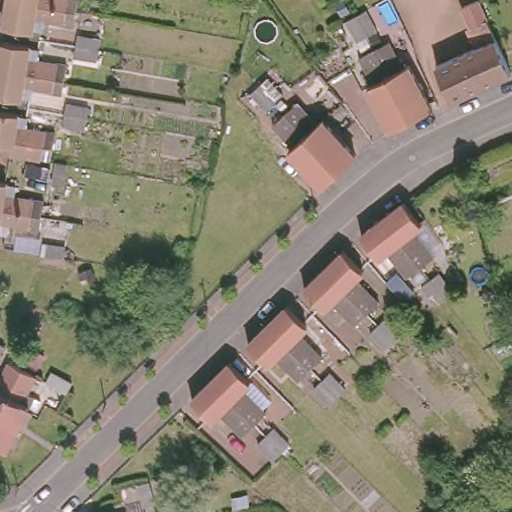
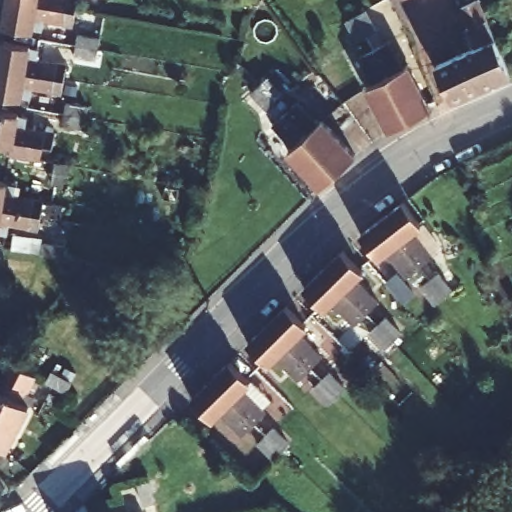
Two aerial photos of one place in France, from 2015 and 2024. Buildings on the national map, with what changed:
unchanged [(43,17),(41,27),(31,25),(30,28),(1,23),(5,0),(23,0),(73,8),(72,22),(43,17)]
unchanged [(75,0),(73,8),(23,0),(75,0)]
unchanged [(493,34),(509,69),(461,90),(448,96),(434,63),(473,45),(463,24),(470,22),(460,1),(462,0),(477,0),(479,3),(493,34)]
unchanged [(342,20),(351,16),(362,11),(371,29),(361,34),(352,38),(342,20)]
unchanged [(368,43),(381,36),(397,65),(405,62),(428,105),(407,116),(368,43)]
unchanged [(74,58),(76,49),(78,37),(99,40),(97,52),(95,62),(74,58)]
unchanged [(0,39),(22,43),(21,46),(33,48),(31,57),(60,63),(57,76),(0,66),(0,39)]
unchanged [(407,116),(387,127),(363,83),(370,80),(354,50),(368,43),(407,116)]
unchanged [(27,84),(26,94),(15,92),(14,95),(0,93),(0,66),(57,76),(55,89),(27,84)]
unchanged [(246,93),(255,85),(262,77),(278,94),(270,102),(262,110),(246,93)]
unchanged [(290,148),(295,143),(276,122),(273,118),(285,107),(295,97),(318,122),(324,117),(358,153),(341,168),(323,184),(290,148)]
unchanged [(61,127),(63,116),(65,105),(87,109),(85,120),(83,131),(61,127)]
unchanged [(3,141),(0,141),(0,109),(11,110),(10,114),(21,116),(20,125),(49,129),(45,153),(35,151),(33,156),(1,151),(3,141)]
unchanged [(65,166),(61,189),(51,187),(55,164),(65,166)]
unchanged [(424,219),(413,226),(434,253),(423,262),(414,250),(402,236),(401,234),(405,231),(401,227),(396,221),(390,225),(385,220),(381,214),(384,212),(386,210),(403,197),(405,195),(424,219)]
unchanged [(4,220),(2,233),(0,233),(0,207),(35,212),(32,225),(4,220)]
unchanged [(381,214),(385,220),(390,225),(396,221),(401,227),(405,231),(401,234),(402,236),(414,250),(423,262),(412,270),(390,244),(381,251),(363,228),(381,214)]
unchanged [(63,248),(61,259),(39,256),(41,244),(63,248)]
unchanged [(320,263),(340,244),(360,265),(350,274),(373,297),(363,308),(320,263)]
unchanged [(363,308),(354,317),(330,294),(322,302),(301,282),(320,263),(363,308)]
unchanged [(433,311),(418,292),(427,285),(435,279),(450,297),(442,304),(433,311)]
unchanged [(283,304),(305,325),(295,334),(318,358),(308,368),(264,323),(283,304)]
unchanged [(366,335),(373,328),(382,320),(400,338),(391,347),(384,354),(366,335)]
unchanged [(308,368),(298,378),(275,354),(265,363),(245,342),(264,323),(308,368)]
unchanged [(17,365),(0,399),(0,369),(5,359),(17,365)]
unchanged [(227,360),(247,381),(238,390),(261,414),(251,423),(225,396),(208,378),(227,360)]
unchanged [(17,397),(25,402),(2,445),(0,444),(0,399),(17,365),(30,372),(17,397)]
unchanged [(225,396),(251,423),(242,432),(219,409),(209,418),(188,397),(208,378),(225,396)]
unchanged [(314,392),(320,386),(328,378),(344,394),(336,402),(330,409),(314,392)]
unchanged [(256,446),(263,440),(270,432),(287,449),(280,457),(273,463),(256,446)]

